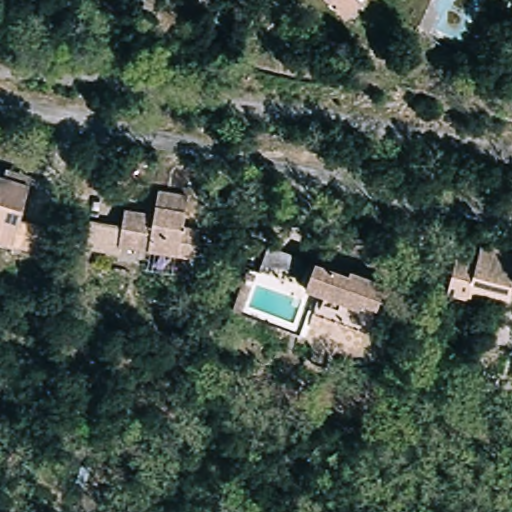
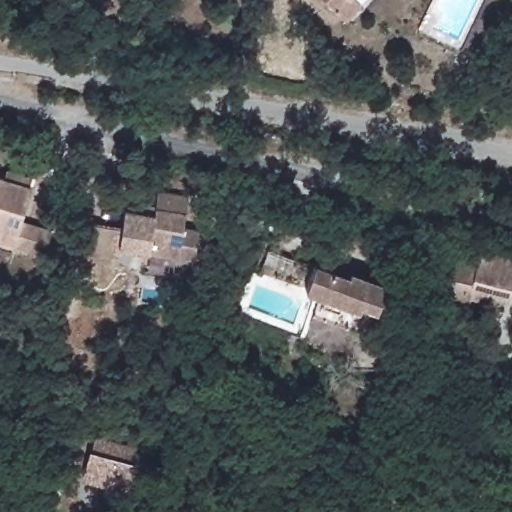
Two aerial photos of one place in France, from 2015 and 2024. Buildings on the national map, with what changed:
unchanged [(328,0),(353,0),(357,5),(343,16),(335,7),(328,0)]
unchanged [(0,246),(0,185),(31,192),(23,224),(56,231),(50,258),(0,246)]
unchanged [(194,265),(120,250),(126,215),(154,220),(158,197),(186,202),(180,235),(199,239),(194,265)]
unchanged [(478,271),(482,252),(512,258),(512,286),(508,302),(489,298),(485,307),(450,297),(457,266),(478,271)]
unchanged [(331,298),(312,292),(320,267),(353,277),(355,271),(390,282),(383,306),(368,301),(366,306),(348,301),(345,311),(328,306),(331,298)]
new [(83,482),(94,453),(97,436),(137,447),(133,465),(128,493),(83,482)]

